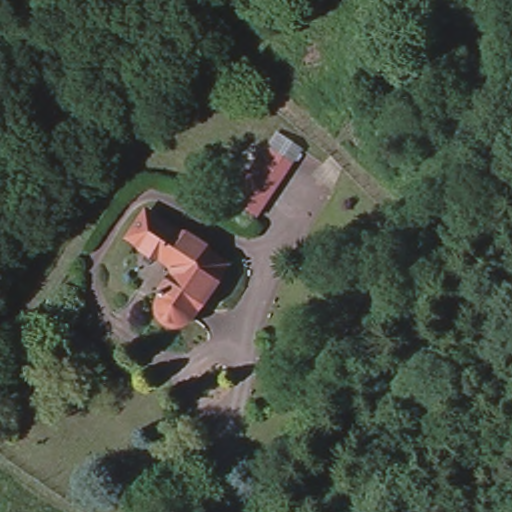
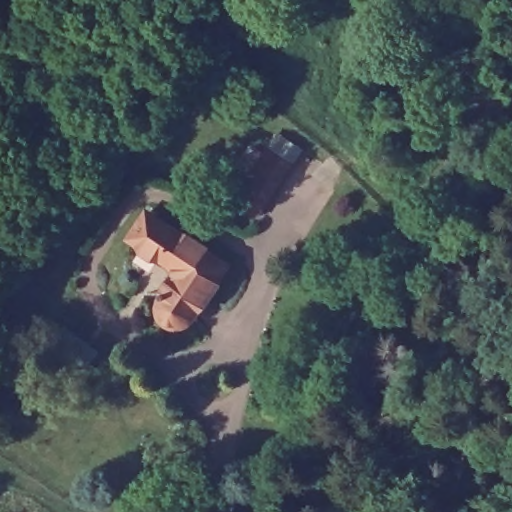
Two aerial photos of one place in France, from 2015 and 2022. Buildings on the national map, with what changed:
unchanged [(265,148),(293,166),(260,222),(230,202),(265,148)]
unchanged [(185,341),(149,317),(172,280),(125,252),(155,212),(233,267),(185,341)]

